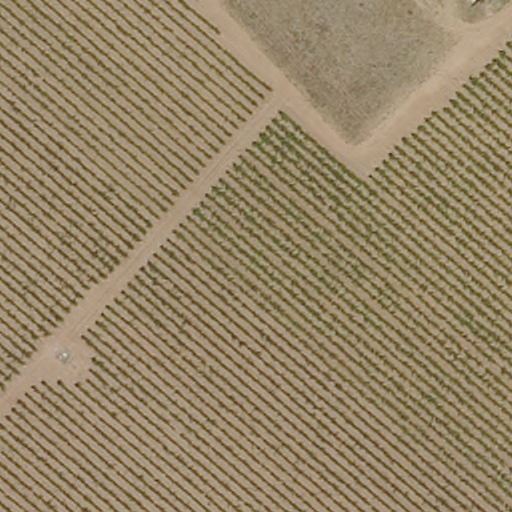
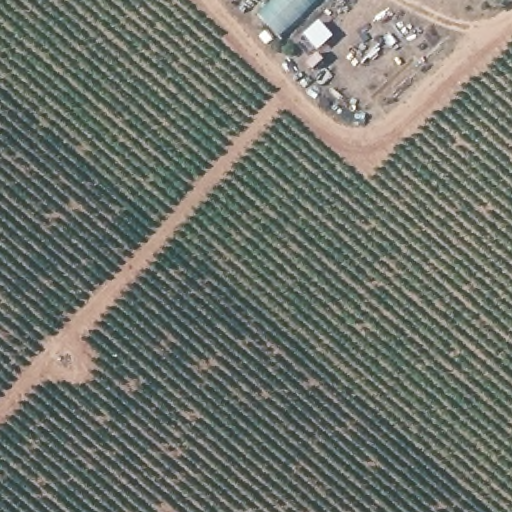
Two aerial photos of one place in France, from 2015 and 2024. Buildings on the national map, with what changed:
new [(257,12),(270,0),(320,0),(281,38),(257,12)]

